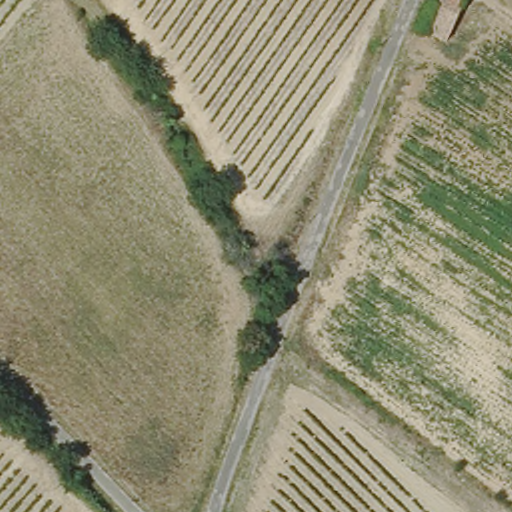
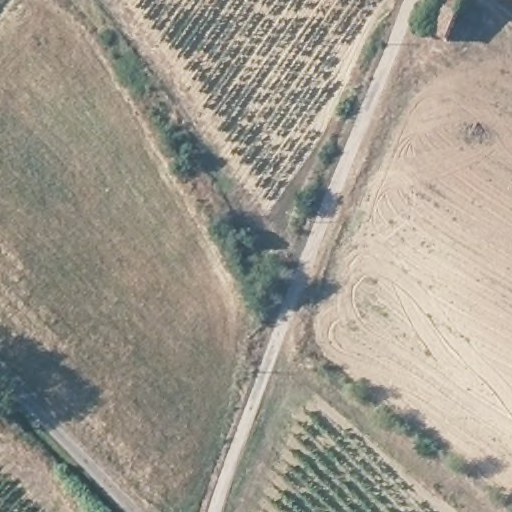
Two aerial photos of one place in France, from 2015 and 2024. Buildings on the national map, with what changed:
unchanged [(421,26),(431,0),(466,0),(461,11),(446,39),(421,26)]

